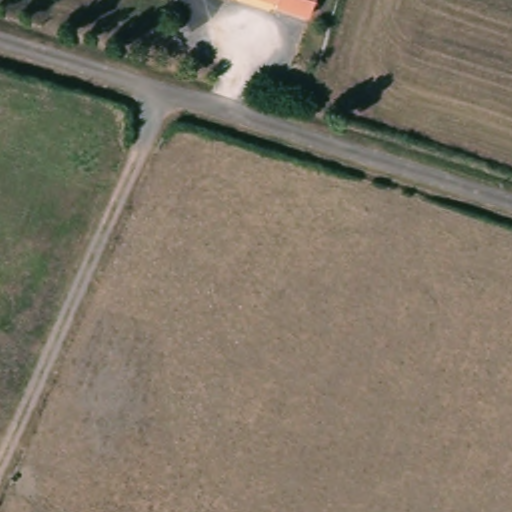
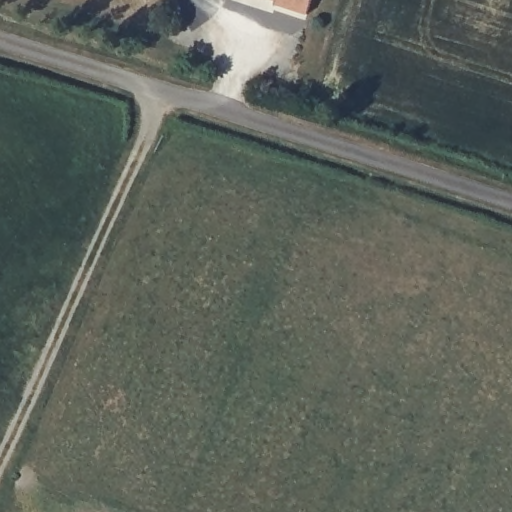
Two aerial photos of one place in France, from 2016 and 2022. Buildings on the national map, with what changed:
unchanged [(312,14),(283,4),(284,0),(317,0),(312,14)]

